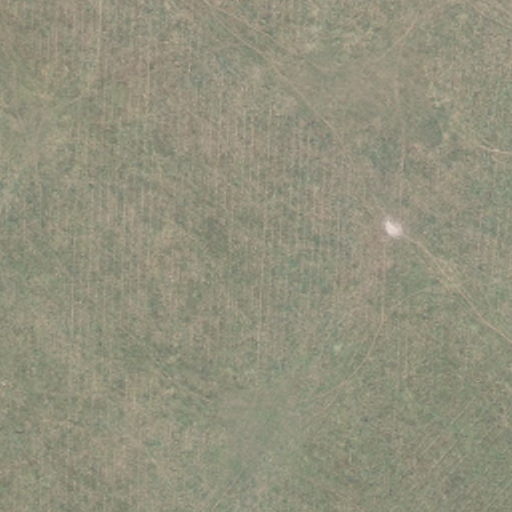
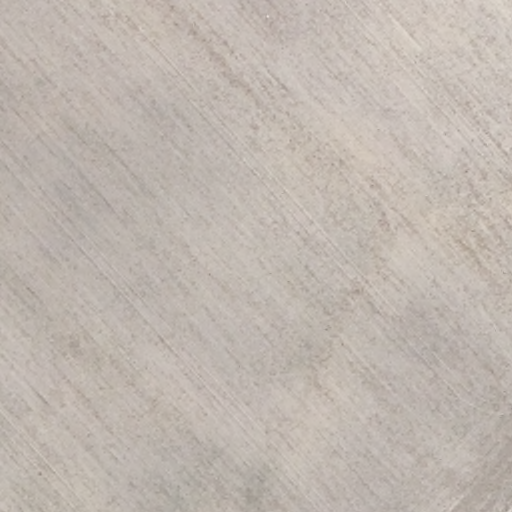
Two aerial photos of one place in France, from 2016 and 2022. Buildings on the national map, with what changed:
[]

